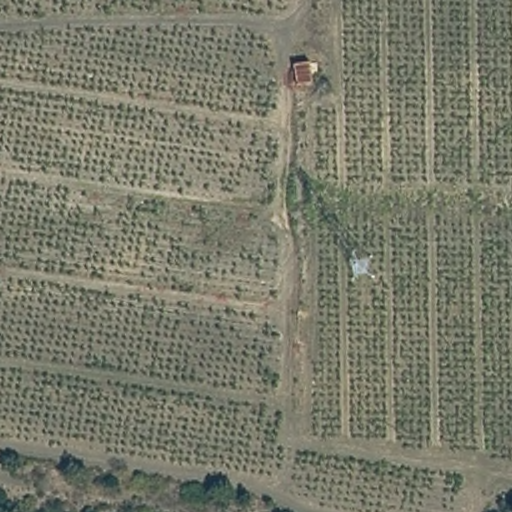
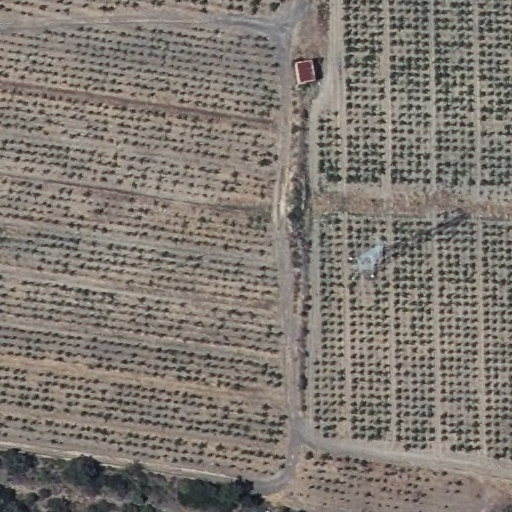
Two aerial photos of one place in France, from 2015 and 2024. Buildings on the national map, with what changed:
unchanged [(313,54),(320,79),(303,82),(297,57),(313,54)]

